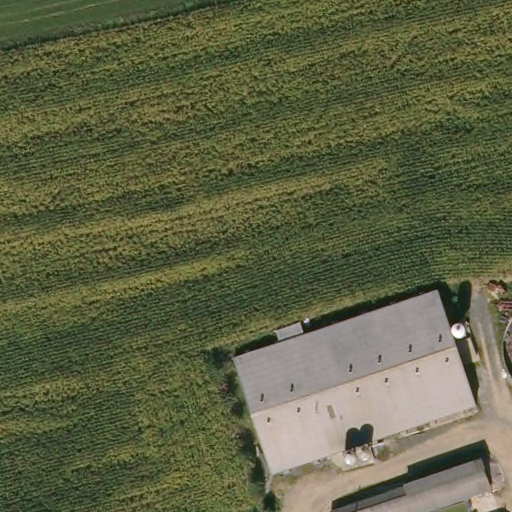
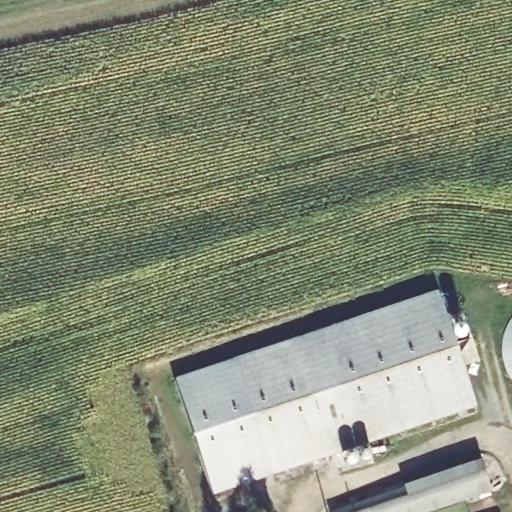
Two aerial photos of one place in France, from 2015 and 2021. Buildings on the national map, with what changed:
unchanged [(273,478),(232,366),(290,345),(435,292),(476,404),(331,457),(273,478)]
new [(273,478),(215,496),(178,379),(232,366),(273,478)]
unchanged [(390,494),(477,464),(487,494),(435,512),(336,512),(390,494)]

